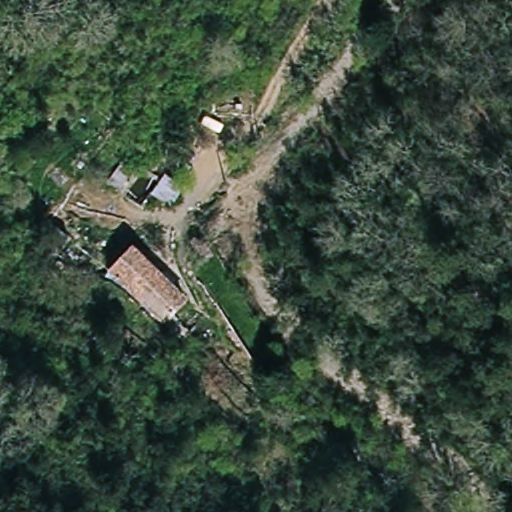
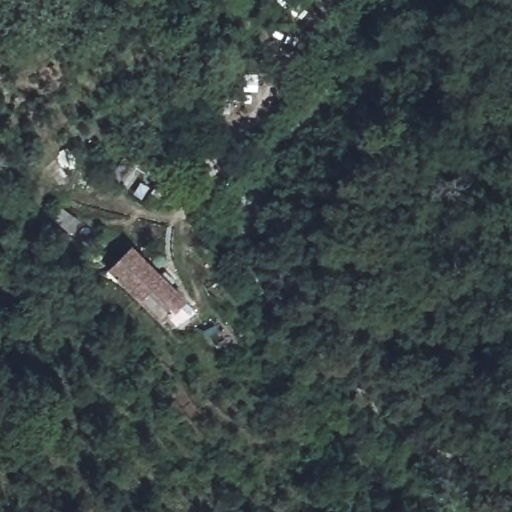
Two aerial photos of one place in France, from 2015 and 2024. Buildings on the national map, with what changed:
unchanged [(70,235),(57,250),(43,237),(57,222),(70,235)]
unchanged [(111,265),(134,243),(208,315),(185,335),(111,265)]

